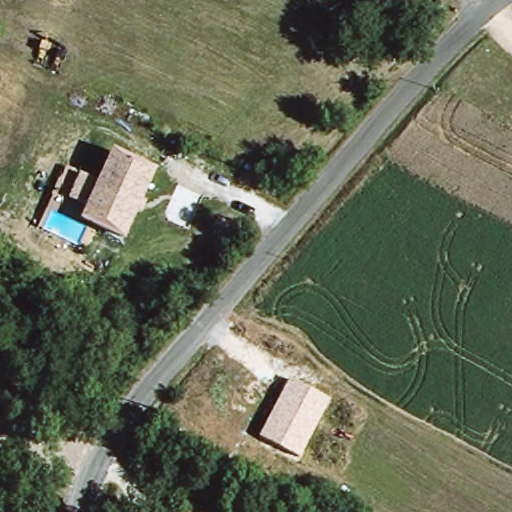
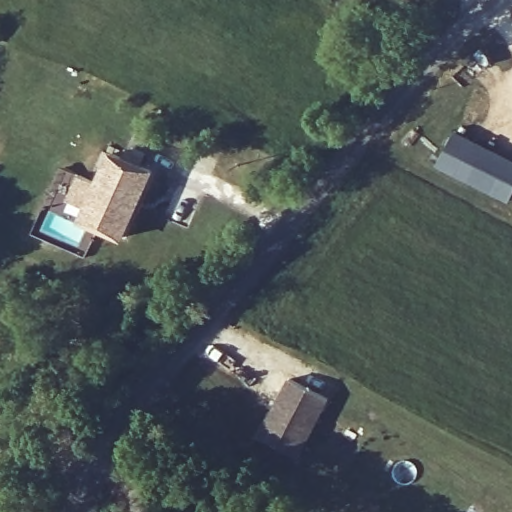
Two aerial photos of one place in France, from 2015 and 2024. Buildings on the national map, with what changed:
new [(438,166),(455,132),(512,160),(512,196),(509,202),(438,166)]
unchanged [(158,168),(125,241),(81,220),(87,208),(69,198),(81,172),(99,180),(114,147),(158,168)]
unchanged [(329,397),(300,455),(259,435),(289,377),(329,397)]

